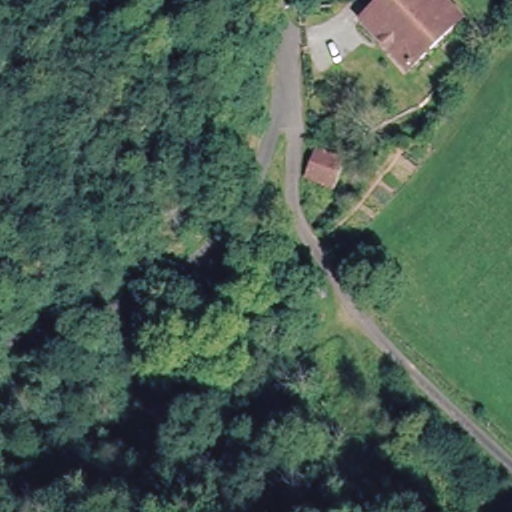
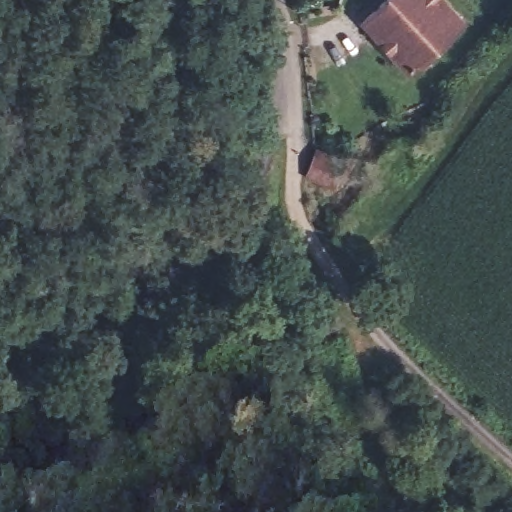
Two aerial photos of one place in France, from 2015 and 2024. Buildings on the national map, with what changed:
unchanged [(388,0),(433,0),(458,28),(406,75),(361,25),(388,0)]
unchanged [(338,158),(335,164),(328,182),(303,172),(303,168),(312,148),(338,158)]

